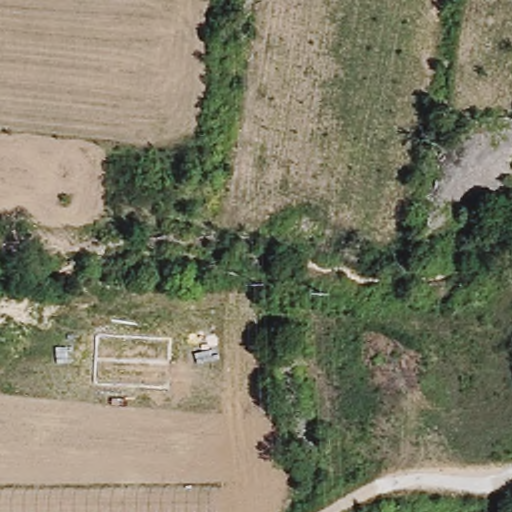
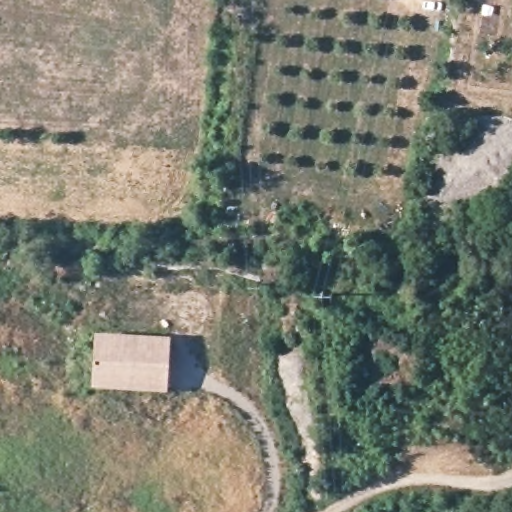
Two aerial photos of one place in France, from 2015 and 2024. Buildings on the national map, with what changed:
new [(173,338),(169,392),(93,388),(96,333),(173,338)]

